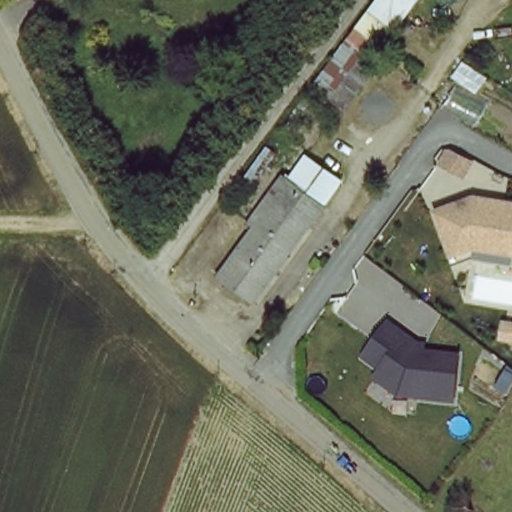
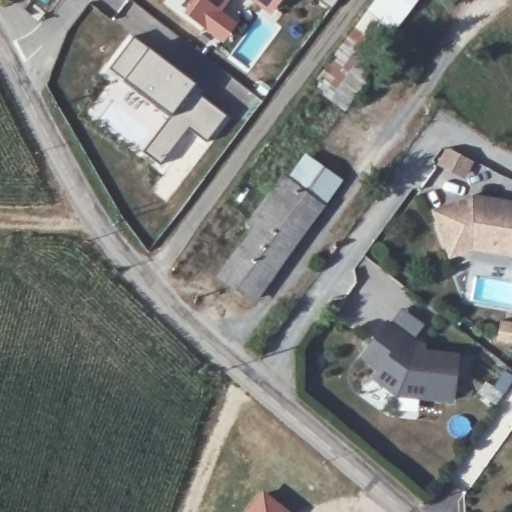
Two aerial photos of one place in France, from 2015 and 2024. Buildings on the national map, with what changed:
new [(221,12),(237,24),(222,43),(184,13),(194,1),(193,0),(230,0),(221,12)]
new [(270,14),(251,0),(280,0),(270,14)]
unchanged [(375,0),(420,0),(393,33),(368,10),(375,0)]
unchanged [(308,89),(368,10),(393,33),(400,40),(342,112),(308,89)]
new [(170,116),(123,81),(108,70),(134,37),(148,49),(194,84),(202,92),(199,95),(224,115),(204,141),(186,127),(159,164),(143,152),(170,116)]
unchanged [(280,173),(301,150),(343,177),(325,205),(280,173)]
unchanged [(325,205),(254,301),(219,277),(250,229),(240,218),(280,173),(325,205)]
unchanged [(448,259),(429,209),(470,195),(512,201),(512,257),(473,250),(448,259)]
unchanged [(394,395),(370,377),(374,371),(357,358),(385,321),(426,351),(457,354),(453,404),(394,395)]
new [(292,512),(244,512),(261,490),(292,512)]

